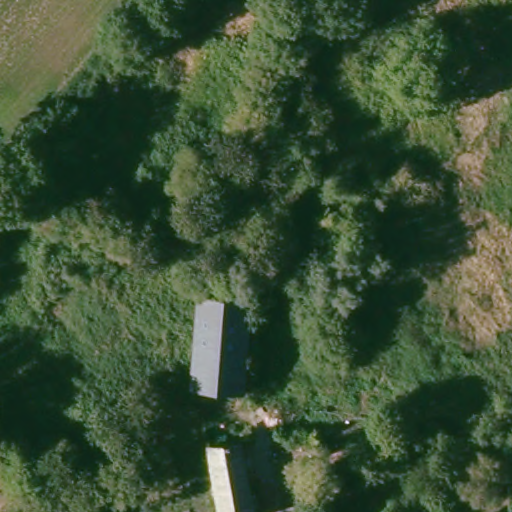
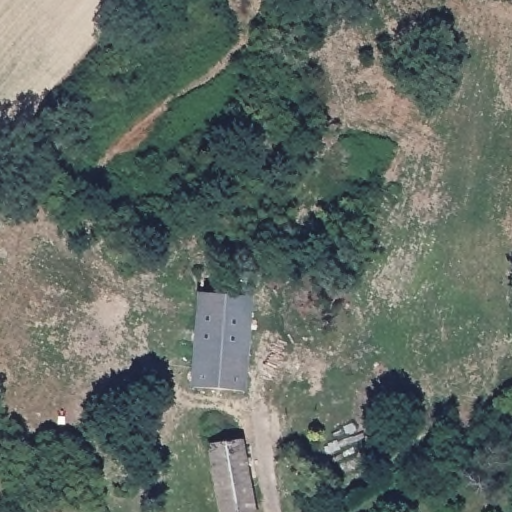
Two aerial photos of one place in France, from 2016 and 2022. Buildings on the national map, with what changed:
unchanged [(310,89),(299,125),(270,110),(276,73),(310,89)]
unchanged [(247,284),(237,409),(187,401),(200,281),(247,284)]
unchanged [(202,440),(240,434),(252,512),(213,512),(208,479),(202,440)]

